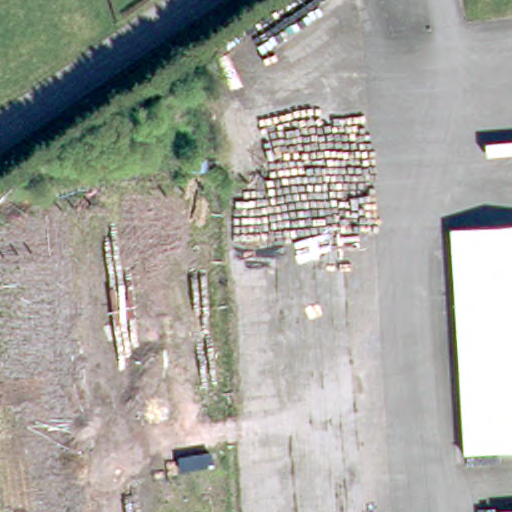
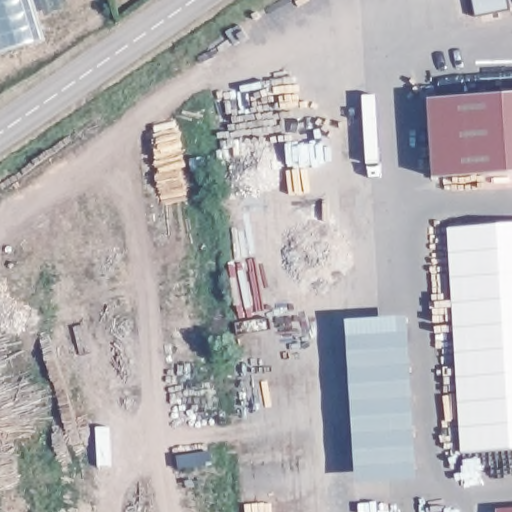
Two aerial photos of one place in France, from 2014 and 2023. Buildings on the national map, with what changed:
new [(0,54),(0,0),(32,0),(44,40),(0,54)]
new [(512,94),(512,172),(437,176),(433,98),(512,94)]
unchanged [(465,461),(460,251),(468,249),(512,241),(512,459),(465,461)]
new [(412,314),(420,477),(358,480),(350,318),(412,314)]

